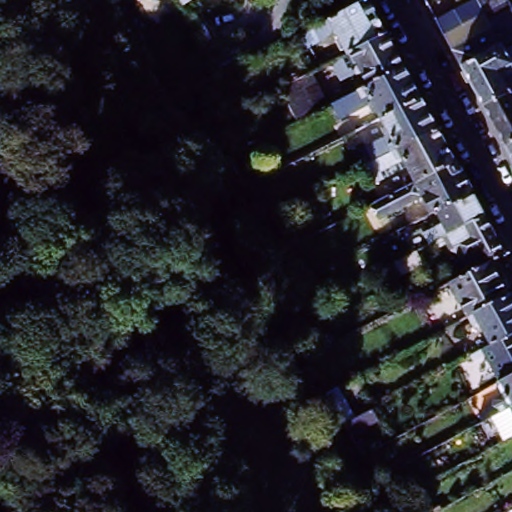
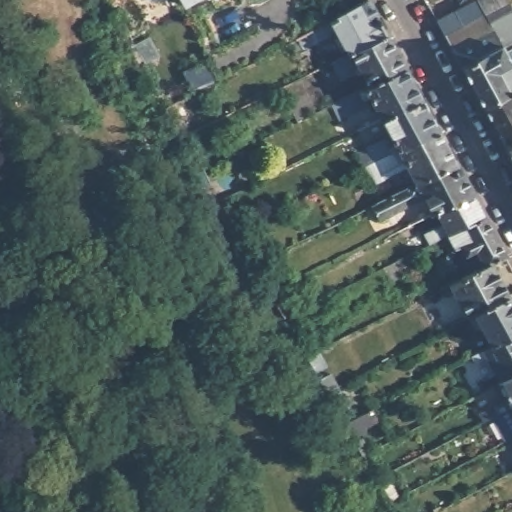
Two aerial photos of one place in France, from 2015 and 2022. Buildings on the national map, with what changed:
unchanged [(177,0),(191,0),(180,6),(177,0)]
unchanged [(335,26),(330,29),(331,31),(320,37),(313,25),(341,9),(336,0),(369,0),(387,31),(350,50),(347,51),(335,26)]
unchanged [(475,0),(508,0),(510,2),(445,37),(436,21),(475,0)]
unchanged [(458,0),(461,0),(459,1),(458,0)]
unchanged [(461,68),(452,51),(512,19),(512,41),(503,46),(461,68)]
unchanged [(387,31),(405,65),(367,84),(350,50),(387,31)]
unchanged [(512,63),(512,65),(511,66),(512,68),(512,92),(483,108),(461,68),(503,46),(512,63)]
unchanged [(405,65),(421,96),(384,114),(381,116),(372,99),(340,116),(331,101),(367,84),(405,65)]
unchanged [(512,92),(512,144),(505,148),(483,108),(512,92)]
unchanged [(384,114),(421,96),(438,126),(365,163),(355,144),(362,140),(366,144),(390,133),(381,116),(384,114)]
unchanged [(438,126),(455,159),(415,180),(407,165),(370,183),(360,165),(361,165),(365,163),(438,126)]
unchanged [(512,144),(512,161),(505,148),(512,144)]
unchanged [(455,159),(472,190),(435,209),(431,211),(422,193),(383,213),(376,199),(415,180),(455,159)]
unchanged [(76,197),(49,213),(31,185),(58,168),(76,197)]
unchanged [(165,189),(188,177),(201,171),(208,186),(172,204),(165,189)]
unchanged [(472,190),(485,213),(433,238),(431,239),(428,240),(423,231),(442,222),(435,209),(472,190)]
unchanged [(485,213),(506,253),(490,260),(469,271),(458,250),(450,247),(440,252),(433,238),(485,213)]
unchanged [(490,260),(508,292),(468,313),(450,280),(459,276),(469,271),(490,260)]
unchanged [(279,291),(270,296),(264,287),(273,282),(279,291)]
unchanged [(508,292),(512,300),(512,331),(491,342),(481,325),(480,326),(474,324),(468,313),(508,292)]
unchanged [(500,378),(487,353),(465,364),(461,358),(491,342),(512,331),(512,371),(500,378)]
unchanged [(512,371),(512,403),(499,410),(485,417),(481,410),(495,404),(497,397),(505,392),(498,379),(500,378),(512,371)]
unchanged [(379,421),(351,436),(345,425),(327,394),(338,388),(356,419),(373,410),(379,421)]
unchanged [(512,403),(512,420),(511,420),(503,418),(499,410),(512,403)]

